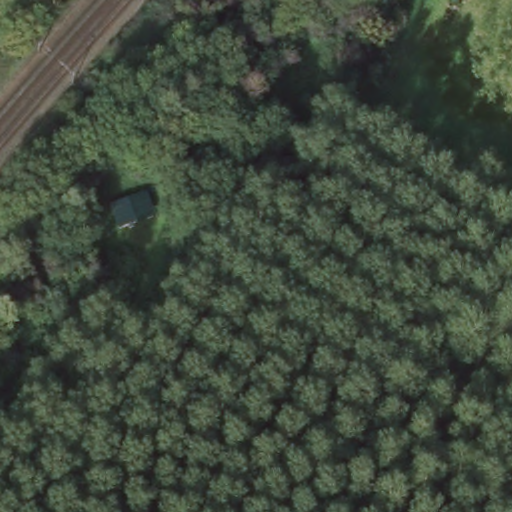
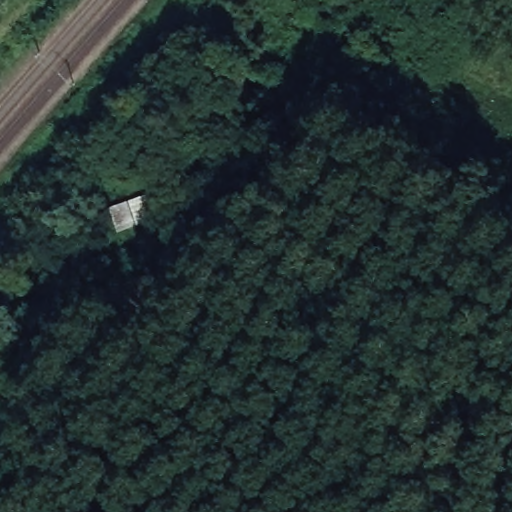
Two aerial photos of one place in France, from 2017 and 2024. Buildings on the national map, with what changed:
unchanged [(146,188),(157,212),(112,232),(102,205),(146,188)]

